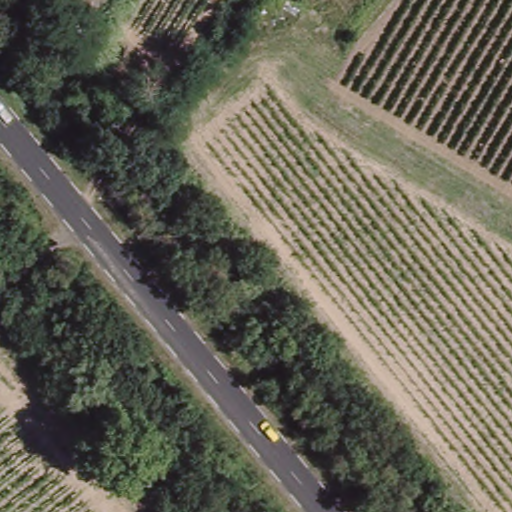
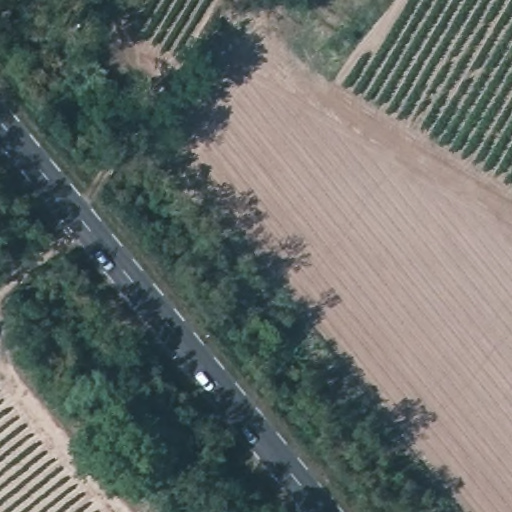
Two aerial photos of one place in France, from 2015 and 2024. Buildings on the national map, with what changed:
unchanged [(76,7),(67,0),(82,0),(76,7)]
unchanged [(92,5),(82,0),(96,0),(92,5)]

